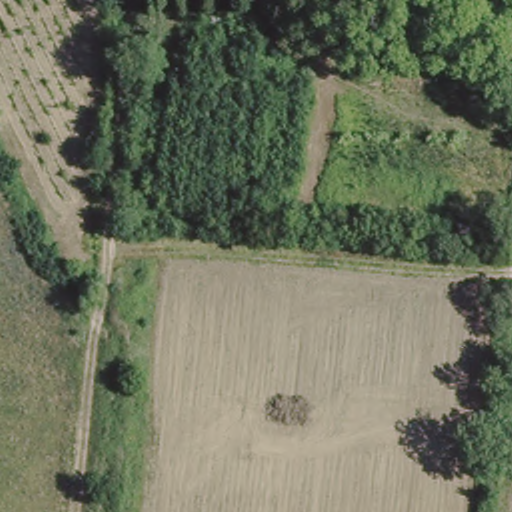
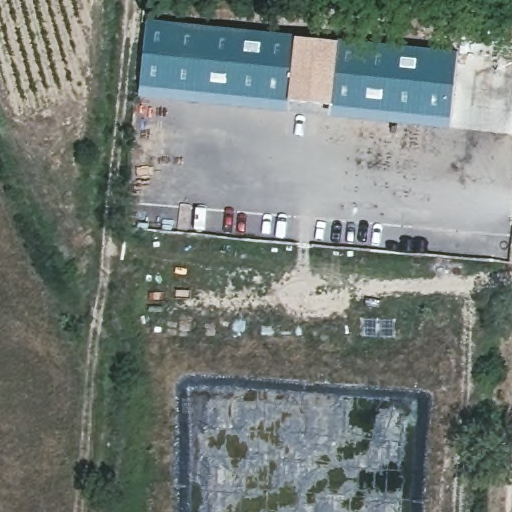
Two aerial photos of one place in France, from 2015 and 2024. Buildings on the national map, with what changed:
unchanged [(495,15),(512,14),(512,35),(497,36),(495,15)]
new [(147,18),(295,34),(289,100),(288,111),(137,95),(147,18)]
new [(295,34),(340,40),(331,104),(289,100),(295,34)]
new [(331,104),(340,40),(361,43),(411,45),(457,51),(450,127),(330,115),(331,104)]

